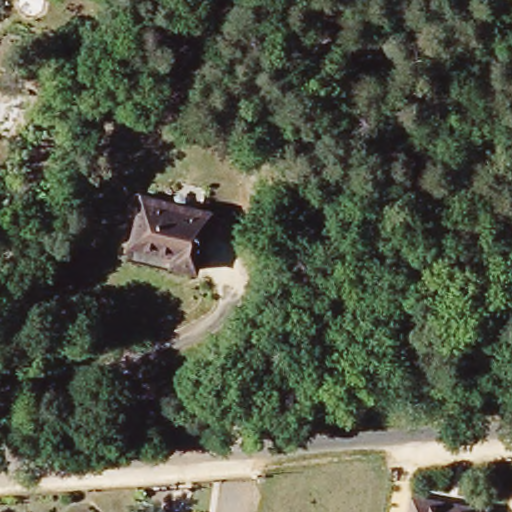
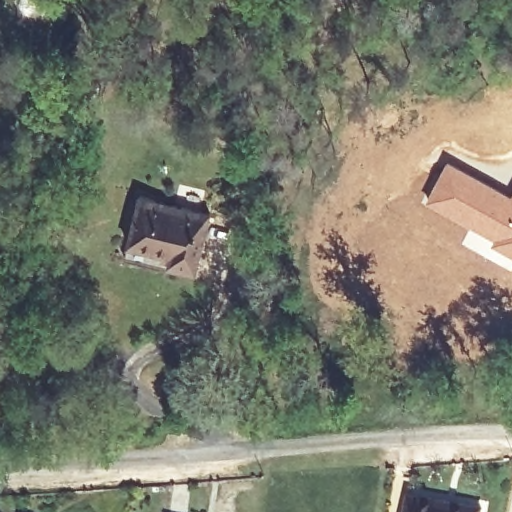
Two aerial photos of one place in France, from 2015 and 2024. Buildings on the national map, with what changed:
new [(446,161),(510,194),(512,190),(512,255),(490,241),(491,237),(425,200),(446,161)]
unchanged [(201,275),(168,268),(170,257),(128,250),(137,199),(212,212),(201,275)]
unchanged [(411,494),(483,508),(482,512),(408,512),(411,494)]

